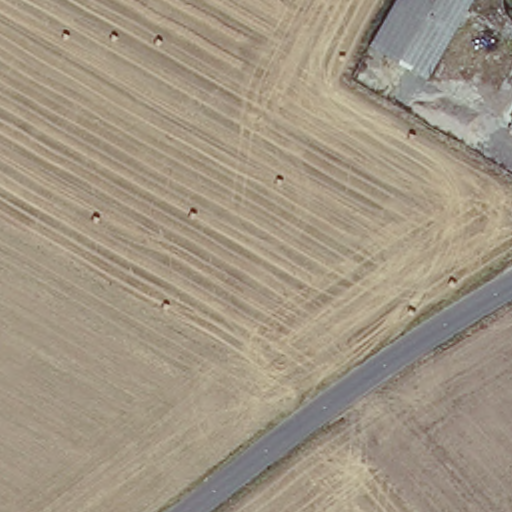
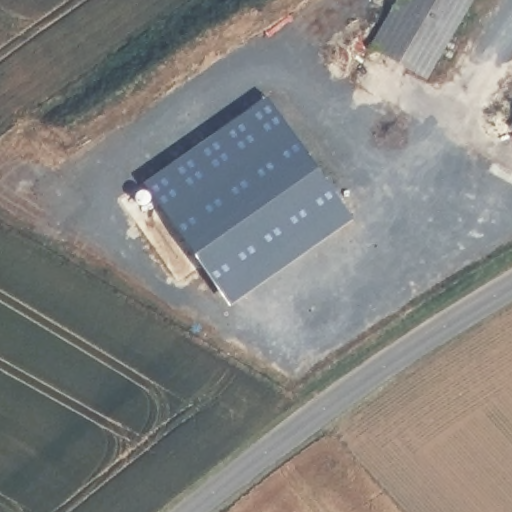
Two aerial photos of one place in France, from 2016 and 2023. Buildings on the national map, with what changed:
unchanged [(371,43),(395,0),(469,0),(426,75),(371,43)]
new [(271,97),(345,205),(220,289),(146,182),(271,97)]

